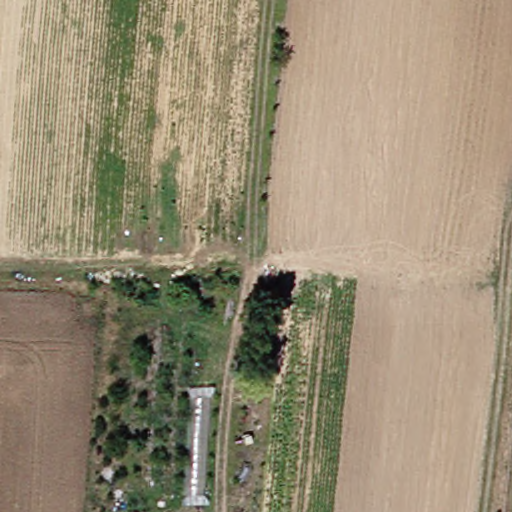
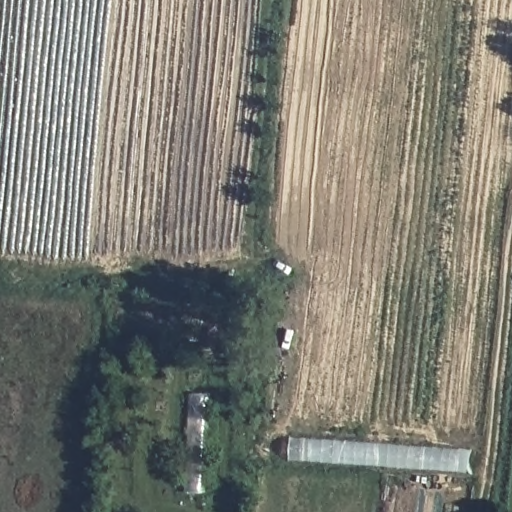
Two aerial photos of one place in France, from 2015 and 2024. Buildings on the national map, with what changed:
new [(289,438),(469,450),(467,473),(288,460),(289,438)]
unchanged [(117,479),(133,479),(133,512),(117,512),(117,479)]

